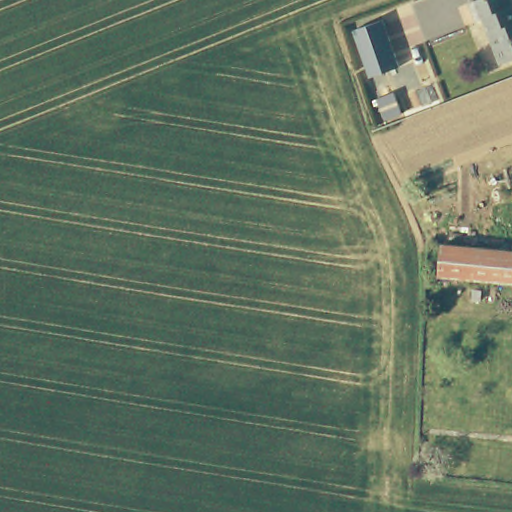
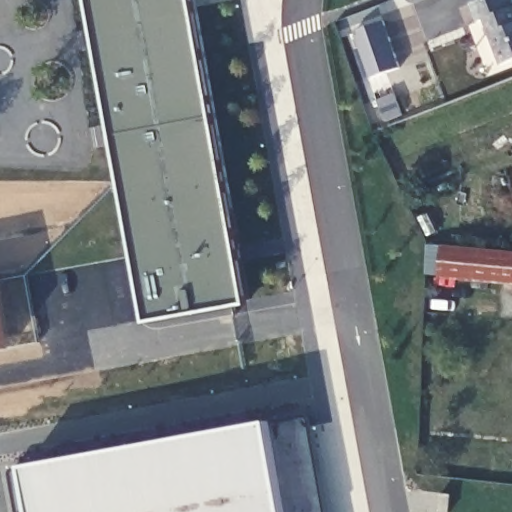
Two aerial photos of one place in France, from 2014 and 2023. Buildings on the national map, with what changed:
new [(246,304),(149,322),(92,0),(192,0),(246,304)]
unchanged [(512,57),(498,62),(482,16),(477,18),(471,0),(512,0),(512,57)]
unchanged [(397,64),(369,75),(352,27),(381,15),(397,64)]
unchanged [(512,280),(443,275),(444,245),(512,250),(512,280)]
new [(273,416),(293,512),(11,512),(3,470),(273,416)]
new [(451,500),(450,512),(439,512),(441,499),(451,500)]

